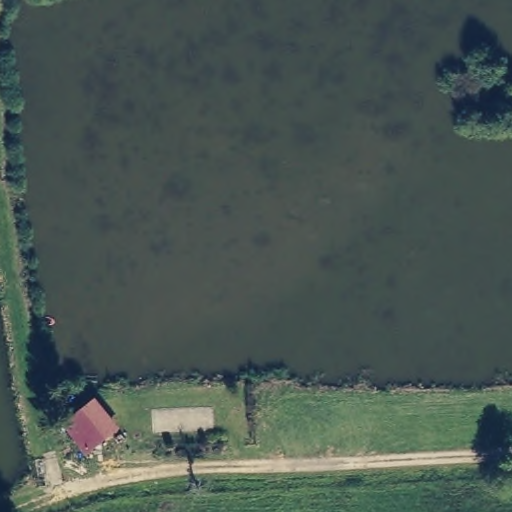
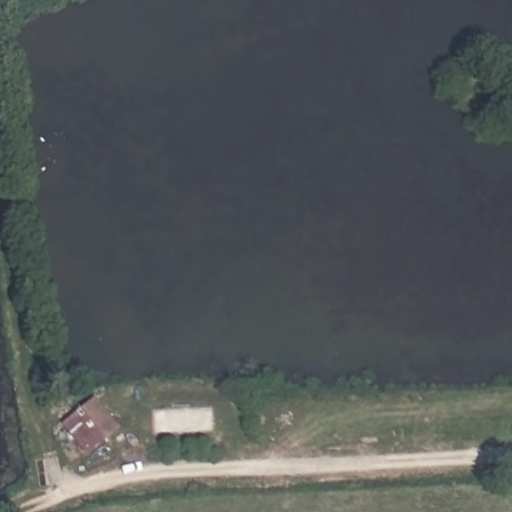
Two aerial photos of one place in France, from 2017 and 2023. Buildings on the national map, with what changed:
unchanged [(98,450),(83,461),(64,437),(79,425),(98,450)]

